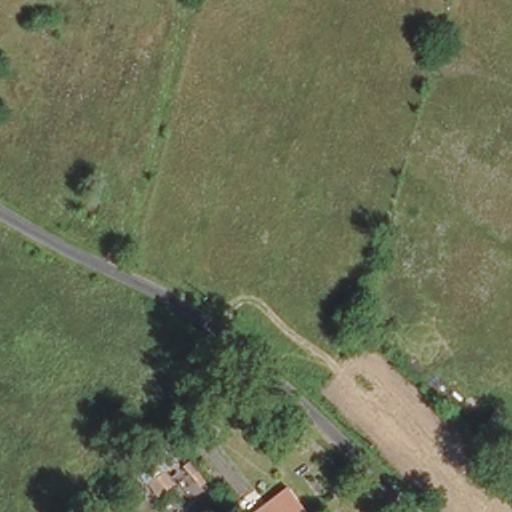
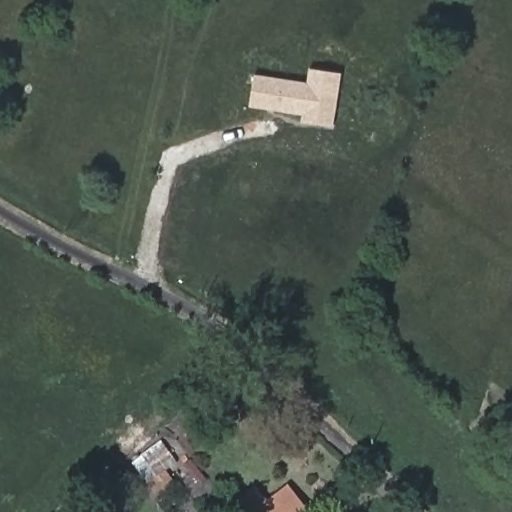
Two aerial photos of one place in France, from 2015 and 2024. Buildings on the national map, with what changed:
new [(333,127),(317,125),(304,114),(252,106),(257,76),(308,84),(309,78),(314,79),(315,70),(341,74),(333,127)]
unchanged [(306,512),(259,512),(287,489),(306,512)]

